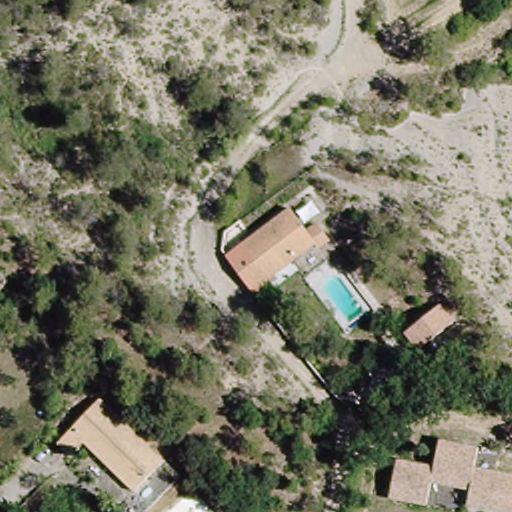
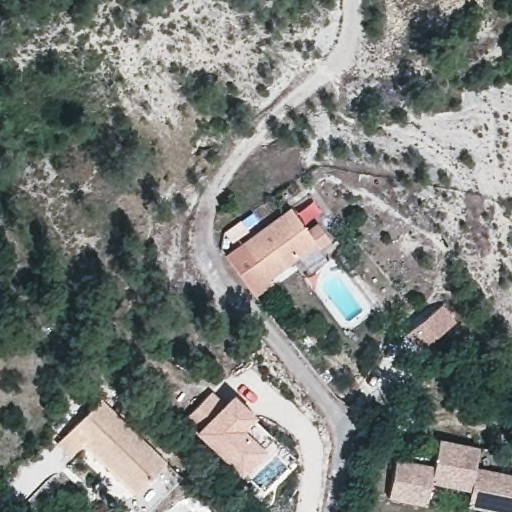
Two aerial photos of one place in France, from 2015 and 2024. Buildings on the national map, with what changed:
unchanged [(304,227),(316,218),(329,239),(300,261),(295,255),(293,252),(266,274),(273,282),(260,292),(236,260),(249,249),(241,240),(286,205),(303,227),(314,241),(304,227)]
unchanged [(424,318),(440,306),(451,321),(435,333),(424,318)]
new [(256,450),(236,471),(184,421),(208,396),(222,408),(231,400),(248,417),(270,437),(256,450)]
unchanged [(82,446),(70,456),(57,444),(99,397),(165,460),(133,493),(82,446)]
unchanged [(481,493),(482,488),(439,486),(437,509),(400,507),(403,468),(441,471),(443,443),(484,446),(482,473),(496,475),(497,467),(512,468),(512,506),(495,505),(481,504),(481,493)]
unchanged [(123,505),(70,456),(82,446),(133,493),(123,505)]
unchanged [(201,499),(215,485),(242,512),(214,512),(201,499)]

